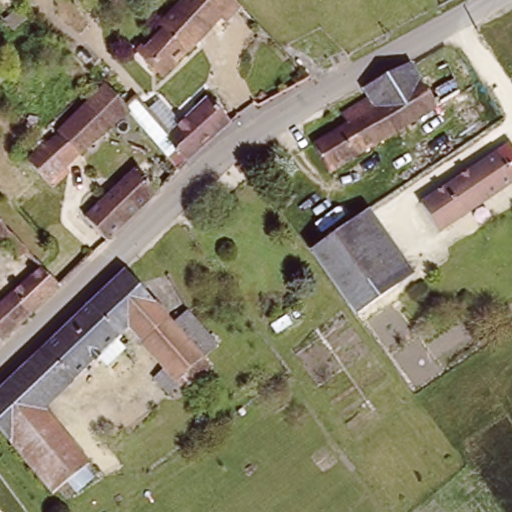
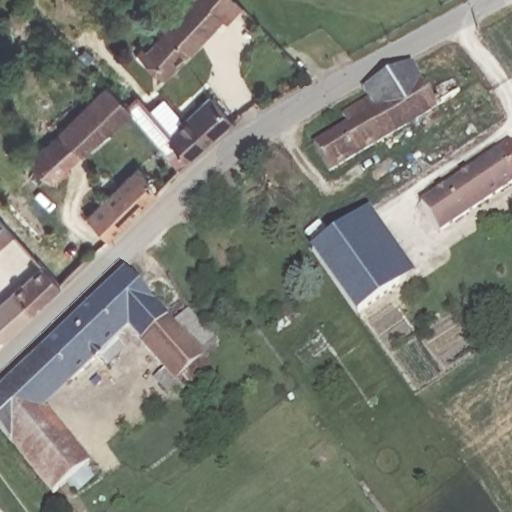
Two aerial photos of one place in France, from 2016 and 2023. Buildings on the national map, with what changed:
unchanged [(197,46),(166,77),(147,59),(170,38),(165,34),(195,0),(234,0),(235,2),(197,46)]
unchanged [(412,60),(422,76),(445,105),(337,173),(318,144),(357,121),(352,114),(370,103),(362,88),(412,60)]
unchanged [(110,131),(93,142),(63,169),(66,173),(52,186),(47,182),(46,183),(29,165),(45,150),(47,152),(110,94),(130,113),(110,131)]
unchanged [(169,140),(182,128),(180,125),(211,96),(234,121),(190,162),(169,140)]
unchanged [(496,154),(512,174),(512,184),(443,237),(423,212),(496,154)]
unchanged [(90,223),(143,174),(158,199),(110,246),(90,223)]
unchanged [(365,209),(415,270),(361,314),(311,254),(365,209)]
unchanged [(12,259),(0,245),(0,227),(22,251),(12,259)]
unchanged [(189,380),(180,370),(170,379),(174,383),(161,393),(146,374),(159,363),(136,334),(75,382),(45,344),(54,335),(126,264),(175,320),(212,361),(189,380)]
unchanged [(0,339),(0,314),(45,270),(62,289),(6,345),(0,339)]
unchanged [(192,306),(228,347),(212,361),(175,320),(192,306)]
unchanged [(0,387),(22,364),(45,344),(75,382),(43,407),(8,435),(0,425),(0,387)]
unchanged [(88,463),(52,491),(8,435),(43,407),(88,463)]

